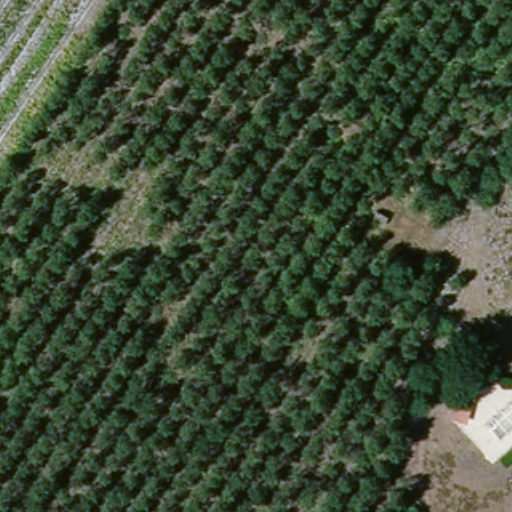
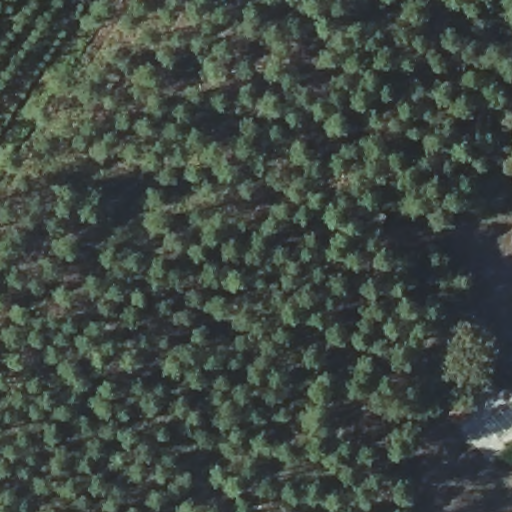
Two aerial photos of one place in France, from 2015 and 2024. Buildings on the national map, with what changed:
[]

